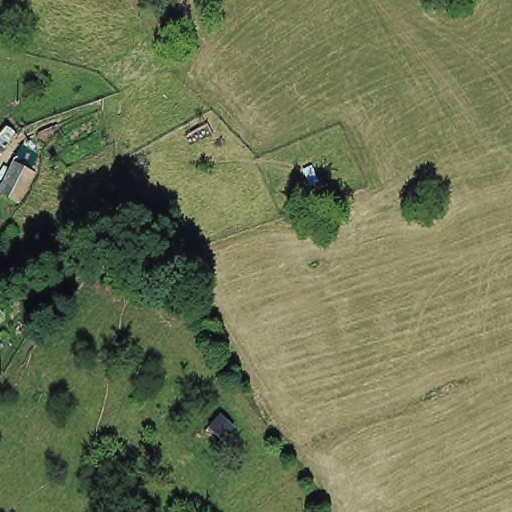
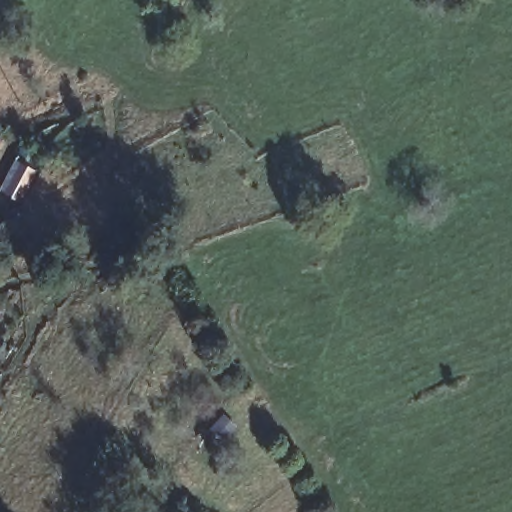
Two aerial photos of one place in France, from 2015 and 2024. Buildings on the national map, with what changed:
unchanged [(1,183),(18,145),(39,154),(19,200),(3,192),(0,199),(0,183),(1,183)]
unchanged [(1,322),(0,323),(0,321),(1,322)]

